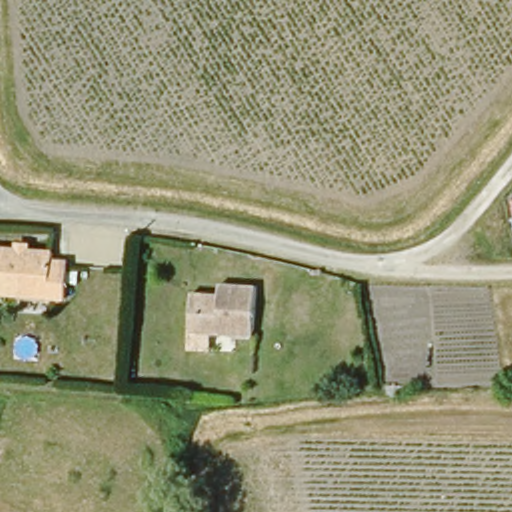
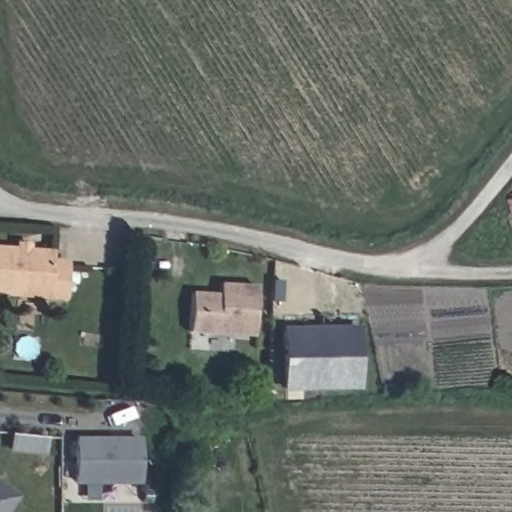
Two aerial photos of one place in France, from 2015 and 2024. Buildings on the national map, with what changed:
unchanged [(51,267),(69,268),(67,298),(0,293),(0,249),(17,250),(17,243),(29,244),(29,251),(53,253),(51,267)]
unchanged [(202,295),(220,295),(220,284),(229,285),(256,286),(254,336),(200,334),(191,333),(193,294),(202,295)]
new [(363,329),(363,385),(289,386),(288,330),(363,329)]
new [(80,438),(102,439),(102,443),(110,443),(110,439),(143,439),(142,483),(80,481),(80,438)]
new [(20,497),(10,512),(0,512),(0,483),(20,497)]

